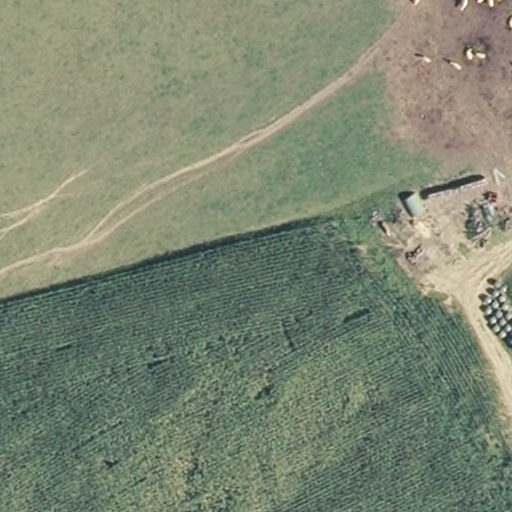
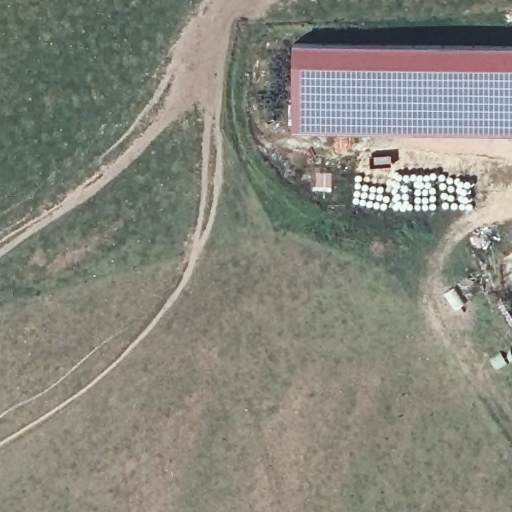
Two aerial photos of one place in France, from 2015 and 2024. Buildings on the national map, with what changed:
new [(512,131),(294,127),(293,42),(512,45),(512,131)]

